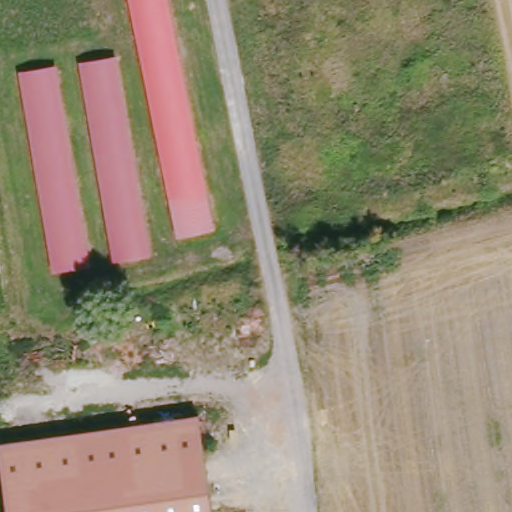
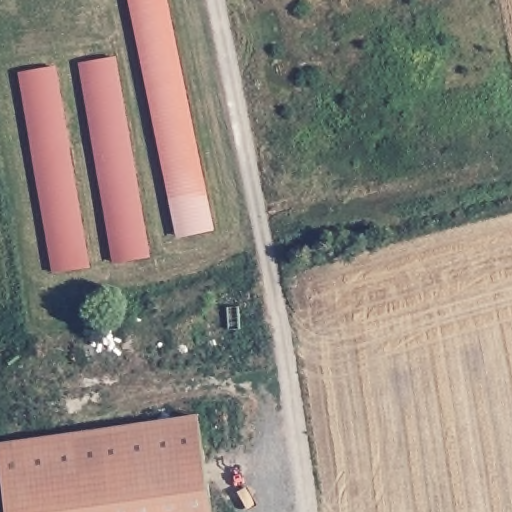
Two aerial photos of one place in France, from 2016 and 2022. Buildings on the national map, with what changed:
unchanged [(180,237),(131,0),(171,0),(217,228),(180,237)]
unchanged [(118,54),(154,258),(113,263),(82,62),(118,54)]
unchanged [(92,268),(55,276),(20,72),(60,65),(92,268)]
unchanged [(216,512),(12,512),(4,443),(204,418),(216,512)]

